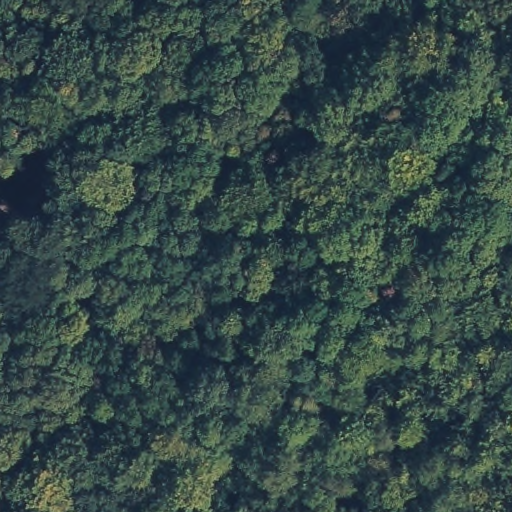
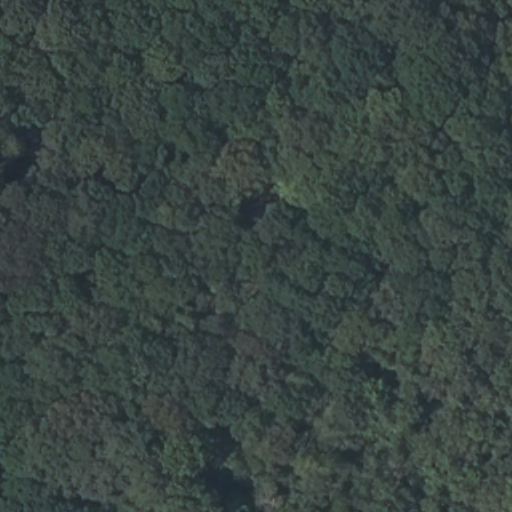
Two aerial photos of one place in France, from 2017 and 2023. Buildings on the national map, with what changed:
[]

